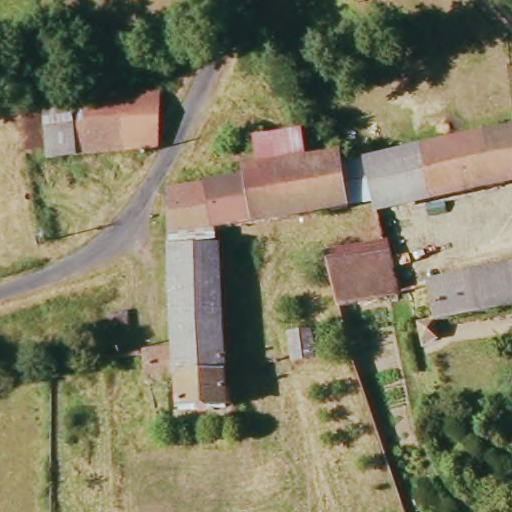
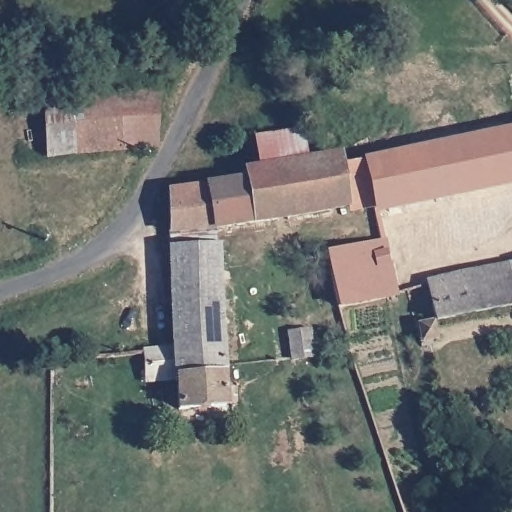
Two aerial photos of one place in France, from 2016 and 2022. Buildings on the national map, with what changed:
unchanged [(147,148),(47,156),(46,103),(147,94),(147,148)]
unchanged [(375,221),(372,208),(361,164),(512,134),(512,188),(375,221)]
unchanged [(167,237),(166,195),(243,181),(242,172),(256,170),(254,142),(296,135),(301,162),(337,157),(339,168),(347,211),(167,237)]
unchanged [(347,211),(339,168),(361,164),(372,208),(347,211)]
unchanged [(401,292),(342,306),(330,253),(387,239),(401,292)]
unchanged [(163,247),(214,244),(225,405),(175,407),(173,378),(170,345),(163,247)]
unchanged [(438,322),(431,284),(512,266),(512,307),(438,322)]
unchanged [(115,324),(115,308),(129,308),(130,323),(115,324)]
unchanged [(424,347),(420,329),(434,325),(438,343),(424,347)]
unchanged [(294,358),(292,331),(312,330),(315,355),(294,358)]
unchanged [(173,378),(142,382),(140,347),(170,345),(173,378)]

